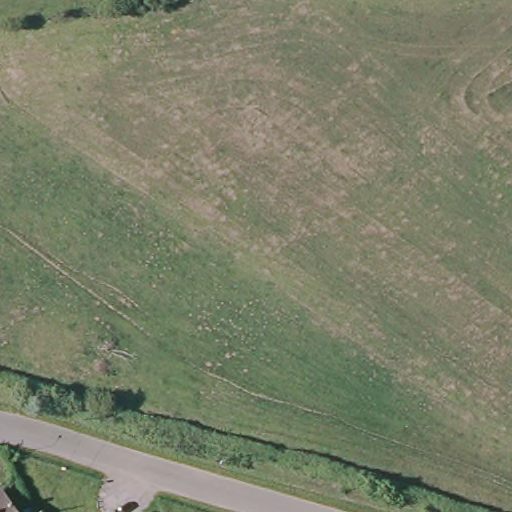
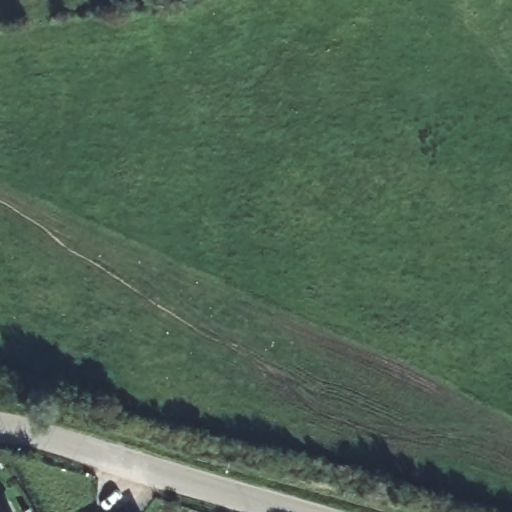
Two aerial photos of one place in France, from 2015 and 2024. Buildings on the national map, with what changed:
unchanged [(0,512),(0,502),(6,512),(0,512)]

